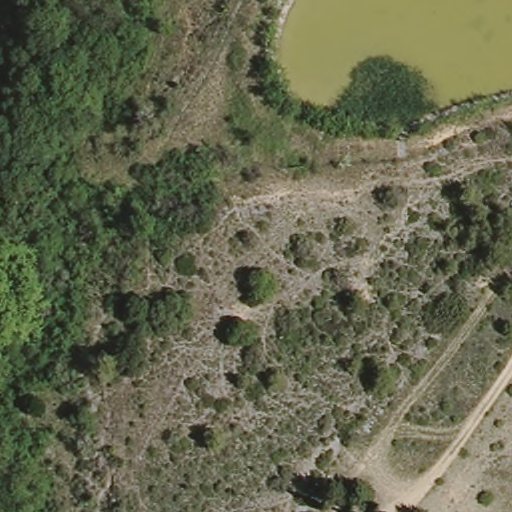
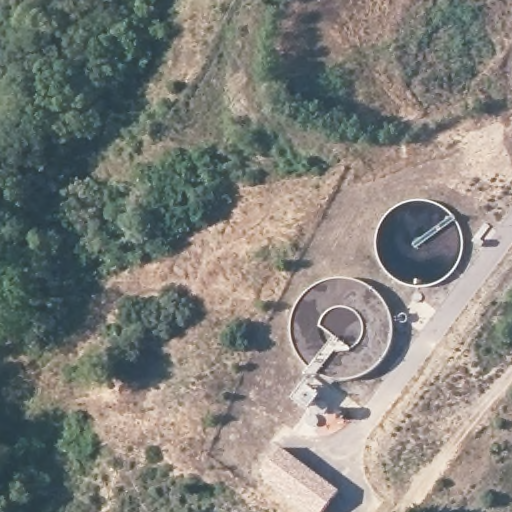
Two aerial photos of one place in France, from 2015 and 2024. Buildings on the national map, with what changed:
new [(340,491),(324,512),(315,512),(263,474),(282,448),(340,491)]

